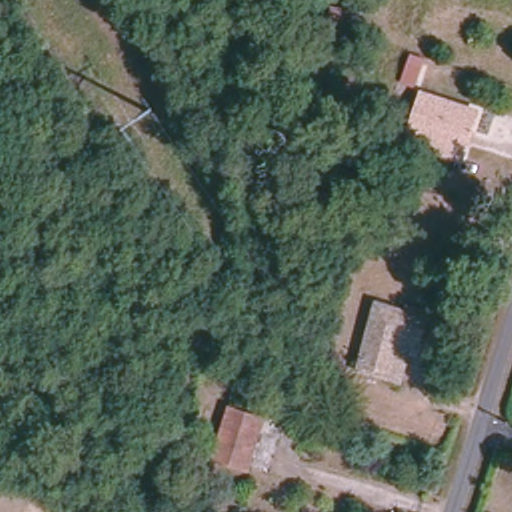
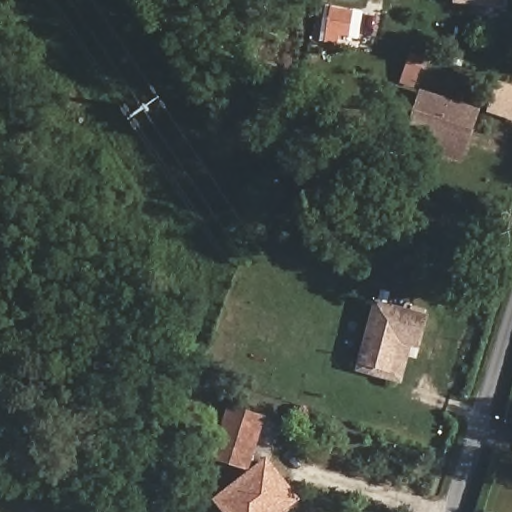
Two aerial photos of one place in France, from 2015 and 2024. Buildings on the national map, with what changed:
unchanged [(300,25),(307,0),(331,0),(320,32),(300,25)]
new [(507,0),(506,9),(454,4),(454,0),(507,0)]
unchanged [(463,162),(404,145),(420,90),(480,107),(463,162)]
unchanged [(358,367),(360,360),(380,293),(408,301),(406,308),(428,314),(422,336),(411,334),(409,341),(400,379),(358,367)]
unchanged [(249,409),(245,420),(266,427),(252,473),(219,462),(235,405),(249,409)]
new [(252,473),(255,464),(266,455),(300,499),(285,512),(222,512),(212,499),(246,471),(252,473)]
unchanged [(204,486),(199,505),(180,499),(185,481),(204,486)]

